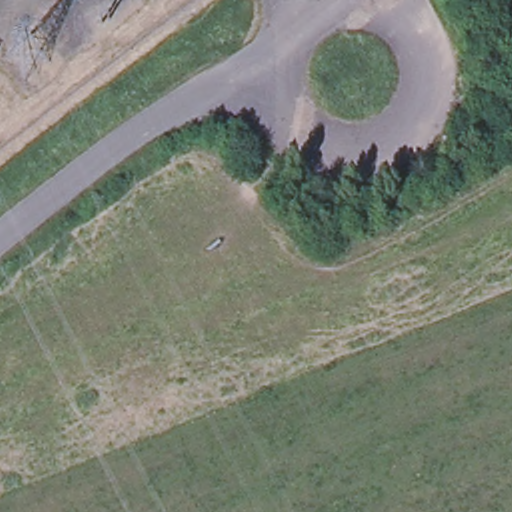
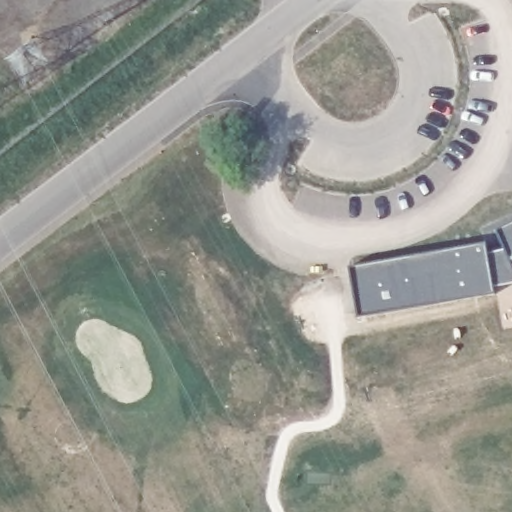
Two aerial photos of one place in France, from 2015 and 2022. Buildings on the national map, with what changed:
new [(495,229),(512,222),(512,271),(495,229)]
new [(494,293),(357,318),(348,268),(484,242),(494,293)]

